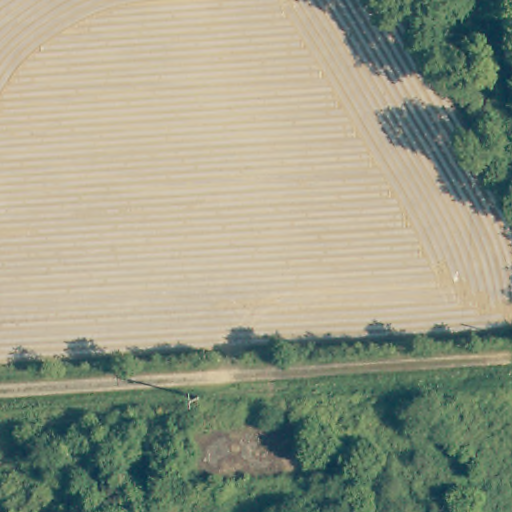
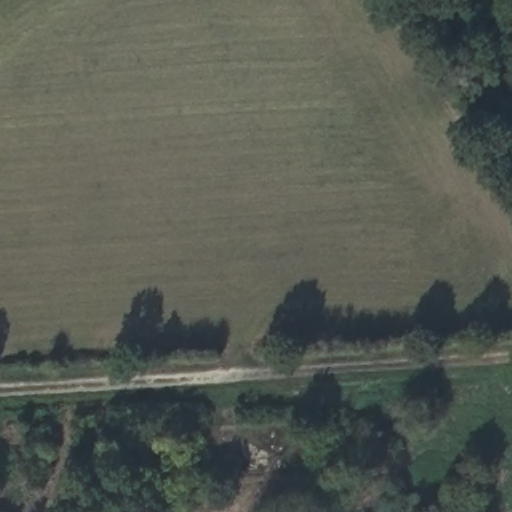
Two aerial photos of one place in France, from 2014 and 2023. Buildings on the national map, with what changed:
[]

